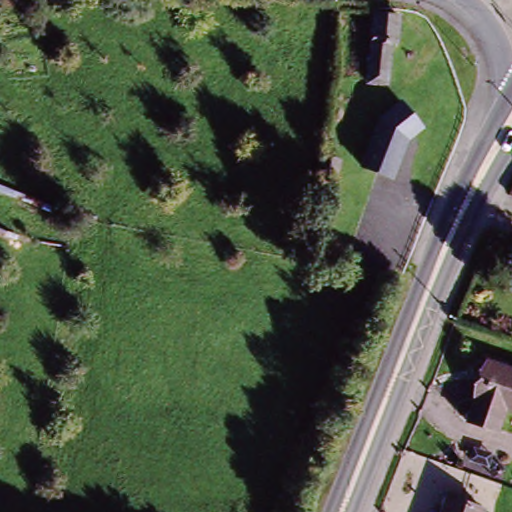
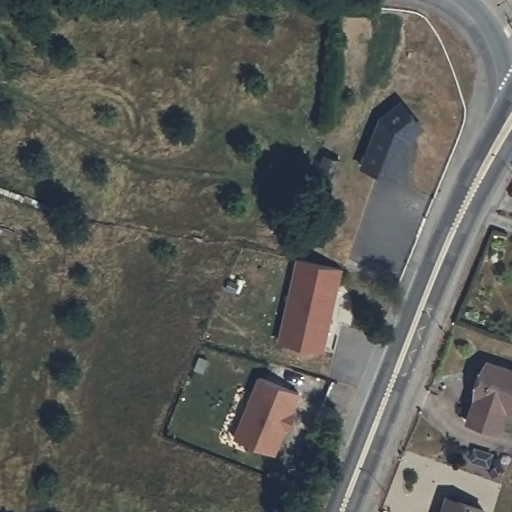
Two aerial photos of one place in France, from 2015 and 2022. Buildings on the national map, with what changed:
unchanged [(397,19),(395,41),(387,45),(384,87),(363,85),(370,16),(397,19)]
unchanged [(409,151),(411,155),(399,183),(370,169),(390,122),(414,108),(432,136),(409,151)]
unchanged [(351,163),(345,191),(330,187),(335,161),(351,163)]
new [(324,350),(277,340),(295,256),(343,266),(324,350)]
unchanged [(462,422),(484,366),(512,377),(512,421),(505,439),(462,422)]
new [(300,391),(292,412),(296,413),(289,431),(284,430),(274,452),(232,436),(256,373),(300,391)]
unchanged [(506,451),(501,462),(480,453),(485,441),(506,451)]
unchanged [(447,504),(466,512),(444,512),(447,504)]

